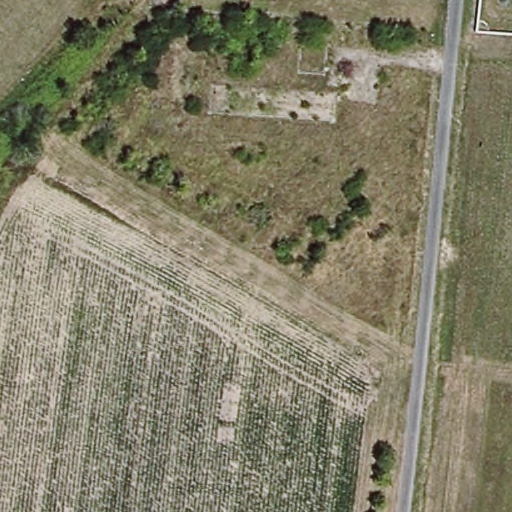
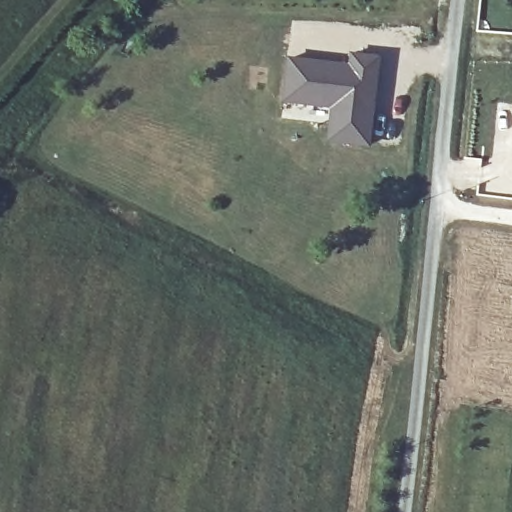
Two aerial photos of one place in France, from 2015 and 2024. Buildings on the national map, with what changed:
new [(327,109),(278,100),(284,59),(345,67),(347,56),(374,60),(361,147),(338,144),(322,141),(327,109)]

